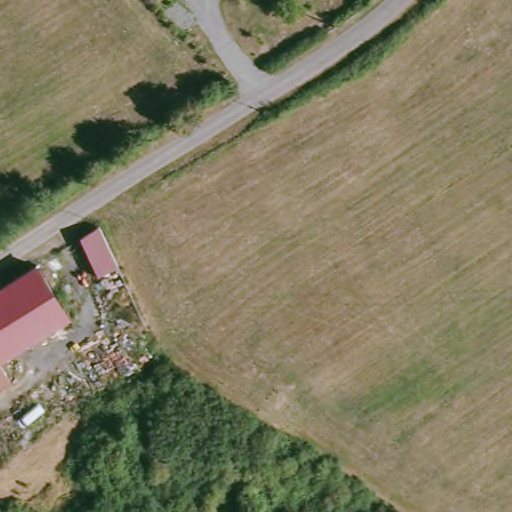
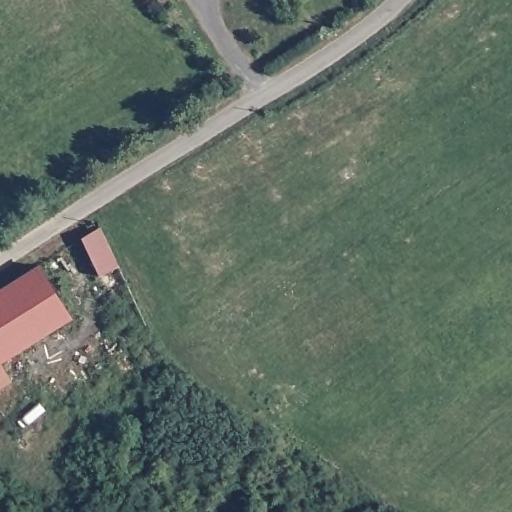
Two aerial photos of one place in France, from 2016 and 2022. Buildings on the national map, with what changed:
unchanged [(38,268),(70,320),(0,364),(0,291),(38,268)]
unchanged [(10,382),(0,389),(0,365),(10,382)]

